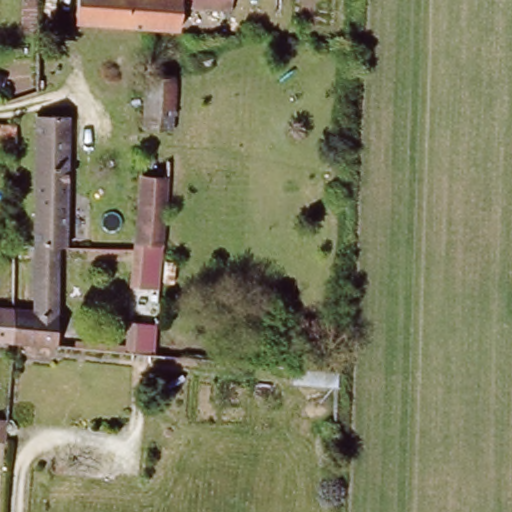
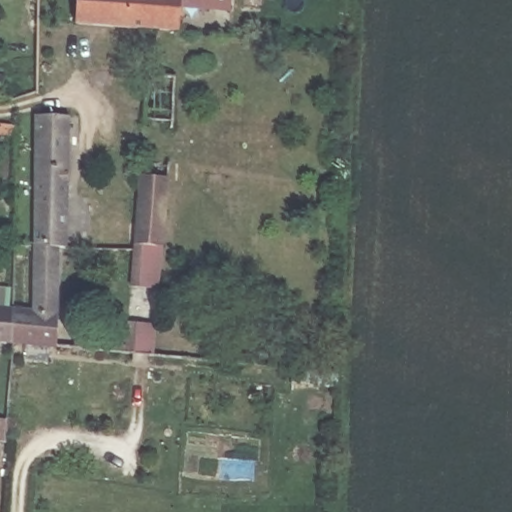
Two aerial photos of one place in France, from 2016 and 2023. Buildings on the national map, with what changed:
unchanged [(151,28),(74,21),(76,0),(226,0),(226,9),(178,8),(176,30),(158,29),(151,28)]
unchanged [(146,246),(134,245),(151,28),(158,29),(176,30),(160,247),(158,279),(143,278),(146,246)]
unchanged [(31,248),(35,114),(68,115),(64,250),(58,249),(31,248)]
unchanged [(29,309),(31,248),(58,249),(54,346),(14,343),(15,308),(29,309)]
unchanged [(15,308),(14,343),(0,342),(0,307),(15,308)]

